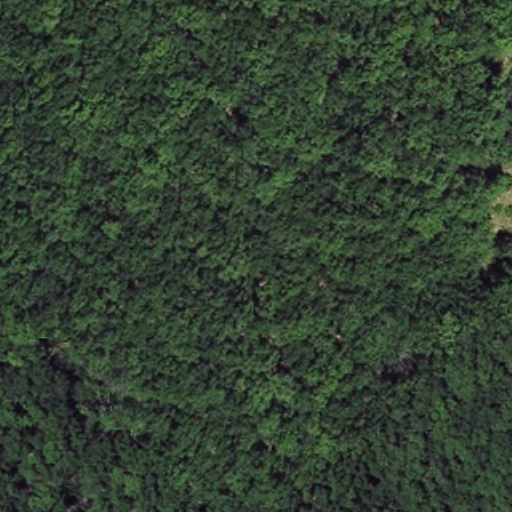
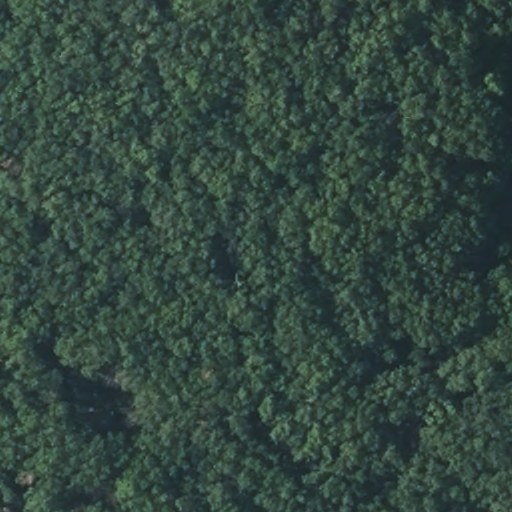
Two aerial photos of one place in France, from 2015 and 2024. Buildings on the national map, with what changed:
[]

